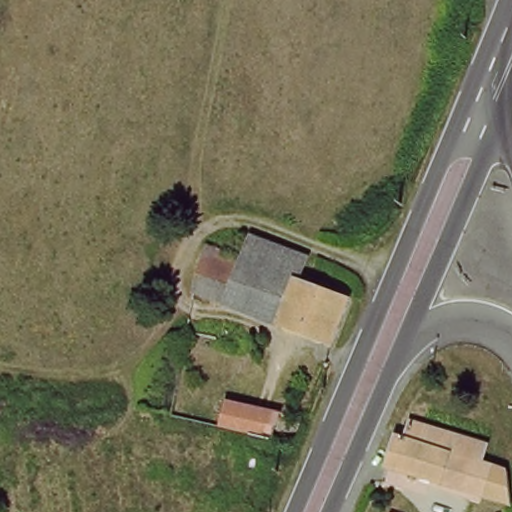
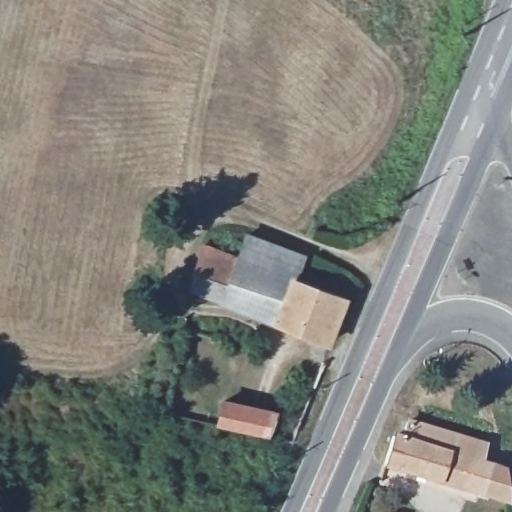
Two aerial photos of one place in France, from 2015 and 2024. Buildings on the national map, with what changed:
unchanged [(300,281),(350,293),(336,338),(192,301),(198,259),(242,270),(247,241),(307,256),(300,281)]
unchanged [(170,416),(142,404),(150,368),(159,367),(167,332),(186,338),(170,416)]
unchanged [(211,400),(266,408),(275,373),(302,382),(286,422),(277,443),(255,436),(207,430),(211,400)]
unchanged [(483,448),(478,463),(505,470),(510,505),(477,495),(477,493),(385,466),(394,436),(403,440),(407,425),(408,422),(485,445),(483,448)]

